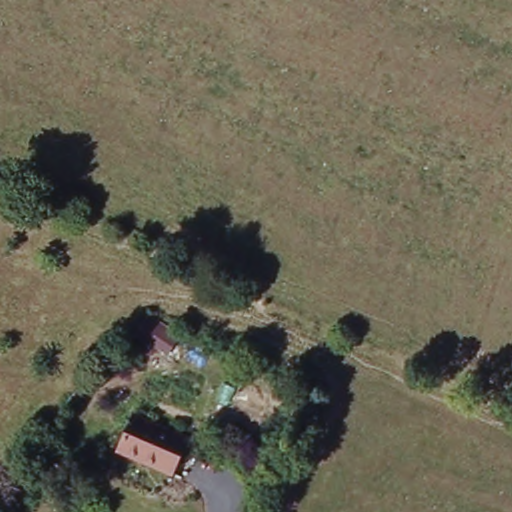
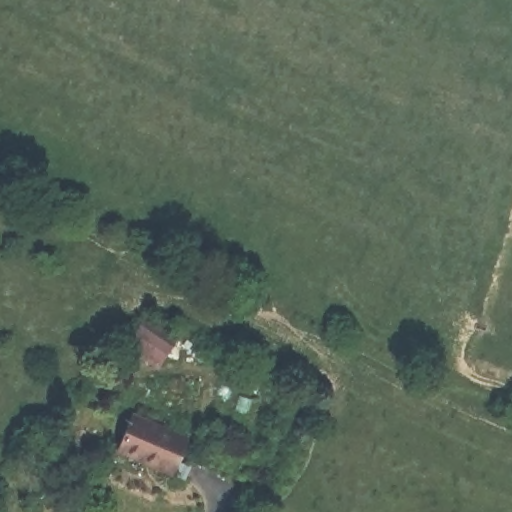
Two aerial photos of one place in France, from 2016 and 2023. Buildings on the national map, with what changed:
unchanged [(170,481),(110,456),(127,420),(185,446),(170,481)]

